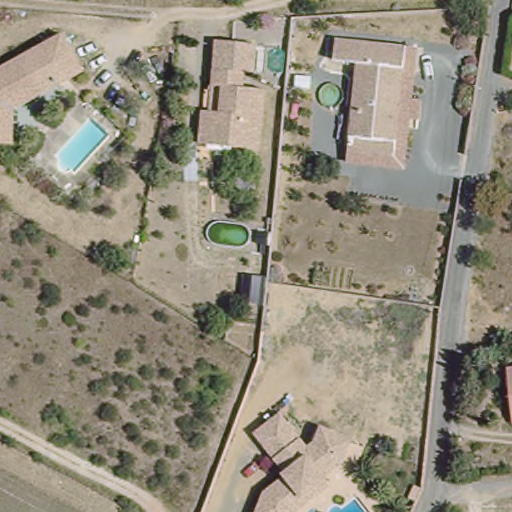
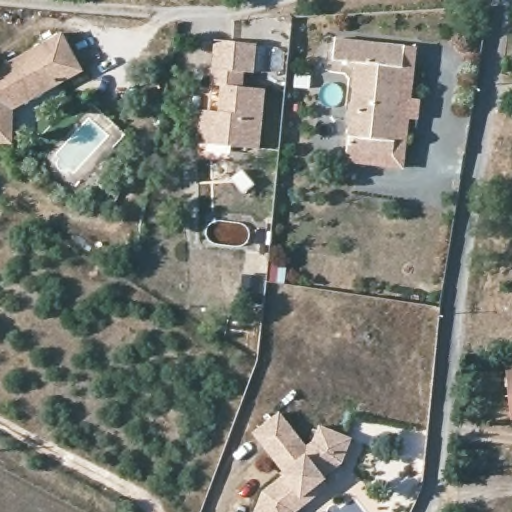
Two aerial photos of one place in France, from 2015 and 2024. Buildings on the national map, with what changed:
unchanged [(16,109),(14,144),(0,143),(0,65),(64,30),(87,69),(16,109)]
unchanged [(358,60),(332,56),(334,36),(387,41),(395,42),(394,62),(403,63),(397,136),(397,150),(351,146),(353,134),(358,60)]
unchanged [(193,106),(207,107),(219,109),(222,80),(207,79),(212,38),(252,42),(249,71),(243,70),(241,85),(264,86),(258,148),(204,142),(189,141),(193,106)]
unchanged [(504,365),(512,364),(512,421),(509,421),(504,365)]
unchanged [(252,509),(264,484),(281,470),(249,428),(273,407),(301,441),(306,442),(317,431),(325,421),(346,437),(353,443),(346,460),(329,477),(333,486),(300,512),(256,512),(252,509)]

